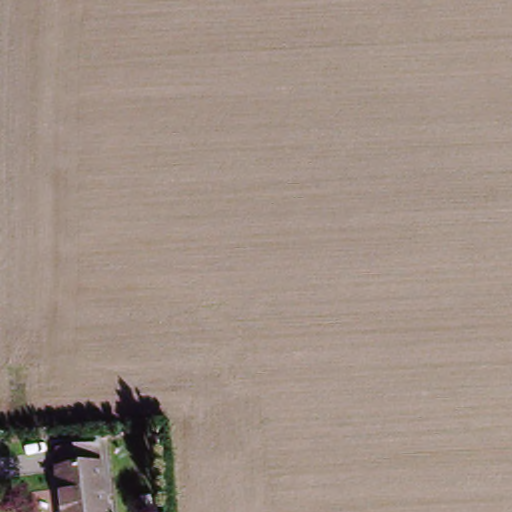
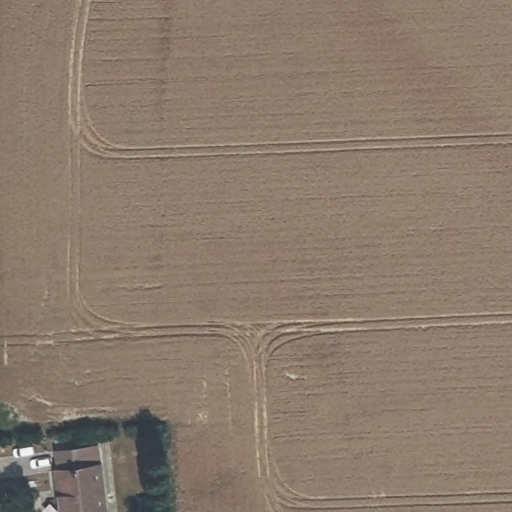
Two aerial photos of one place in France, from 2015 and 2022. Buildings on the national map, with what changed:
unchanged [(100,446),(103,512),(62,512),(59,450),(100,446)]

